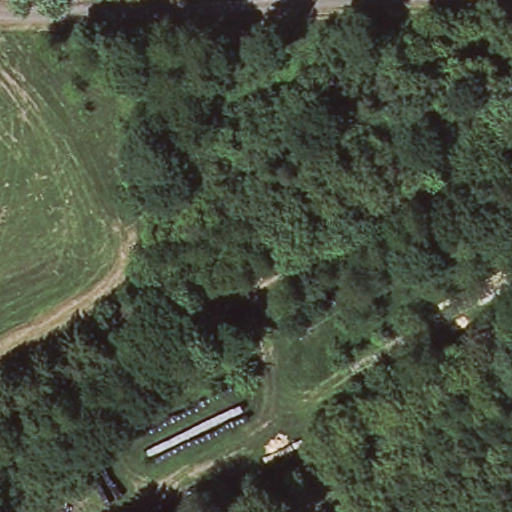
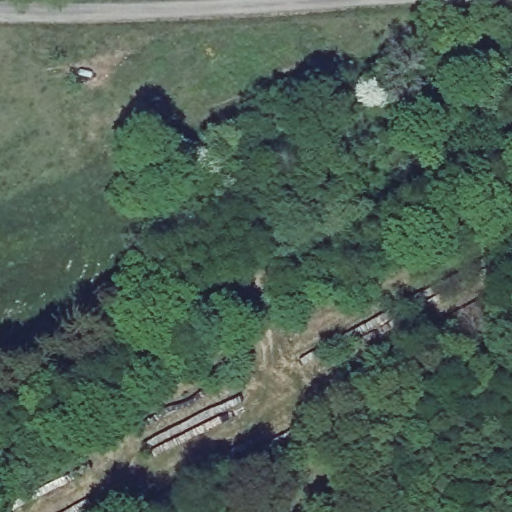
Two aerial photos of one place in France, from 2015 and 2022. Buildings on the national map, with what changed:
[]

